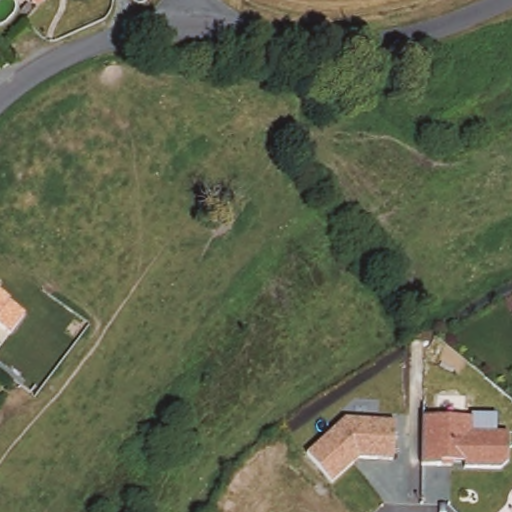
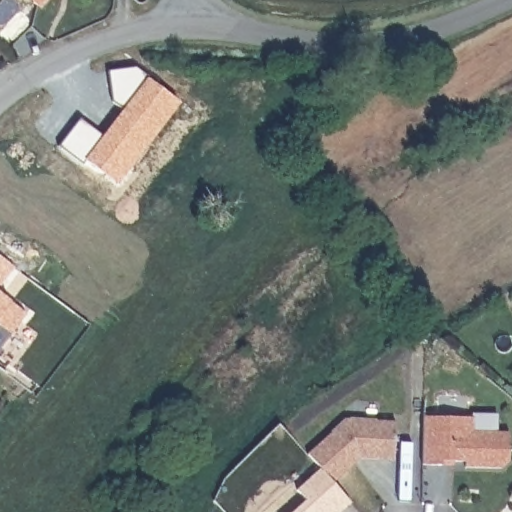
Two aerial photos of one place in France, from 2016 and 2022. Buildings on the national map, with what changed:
unchanged [(34,4),(30,0),(38,0),(34,4)]
new [(110,174),(92,162),(89,167),(64,149),(84,120),(108,137),(126,110),(115,102),(109,71),(136,66),(150,75),(149,76),(179,97),(163,121),(166,123),(136,168),(125,184),(110,174)]
unchanged [(26,315),(10,335),(0,326),(0,294),(10,302),(26,315)]
unchanged [(473,417),(473,431),(511,432),(510,462),(503,467),(463,466),(463,462),(450,465),(423,464),(425,416),(473,417)]
unchanged [(393,460),(359,458),(332,482),(306,453),(345,419),(396,422),(393,460)]
new [(295,490),(320,468),(332,482),(350,501),(339,512),(292,512),(305,501),(295,490)]

